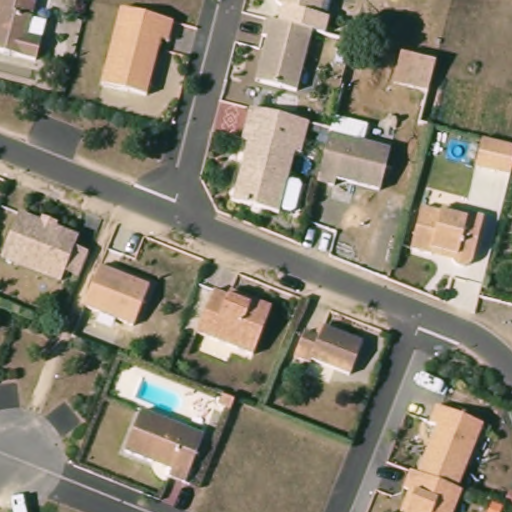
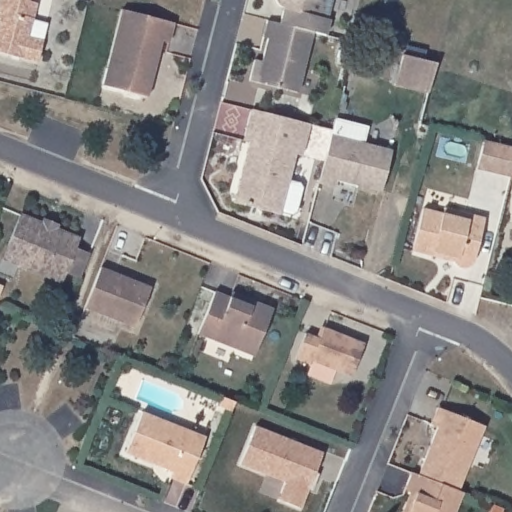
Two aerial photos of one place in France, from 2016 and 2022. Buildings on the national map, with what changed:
unchanged [(46,36),(41,57),(0,47),(0,24),(4,8),(0,7),(2,0),(40,0),(36,14),(31,33),(46,36)]
unchanged [(309,11),(295,7),(271,1),(269,0),(312,0),(309,11)]
unchanged [(99,69),(115,10),(166,23),(161,42),(154,41),(140,97),(115,91),(95,86),(99,69)]
unchanged [(295,92),(255,82),(265,38),(260,36),(265,20),(311,32),(295,92)]
unchanged [(425,93),(393,84),(400,55),(435,64),(425,93)]
unchanged [(293,211),(282,208),(281,211),(235,199),(251,139),(246,137),(255,106),(312,122),(304,153),(297,151),(290,177),(302,180),(305,184),(297,209),(293,211)]
unchanged [(383,189),(339,178),(337,185),(320,181),(333,133),(393,148),(383,189)]
unchanged [(512,173),(511,175),(478,165),(486,138),(512,144),(512,173)]
unchanged [(412,247),(423,205),(443,210),(445,204),(465,210),(485,215),(472,263),(470,263),(468,264),(466,264),(464,264),(463,264),(462,264),(460,263),(458,263),(457,262),(456,261),(455,260),(455,259),(454,258),(433,252),(412,247)]
unchanged [(0,261),(0,248),(1,245),(14,216),(35,225),(37,221),(50,226),(49,230),(71,240),(67,250),(82,256),(75,274),(72,279),(58,273),(56,276),(54,283),(0,261)]
unchanged [(142,284),(126,324),(76,304),(92,264),(142,284)]
unchanged [(223,292),(244,300),(264,308),(245,355),(190,334),(206,291),(221,297),(223,292)]
unchanged [(355,343),(342,375),(304,360),(302,364),(287,358),(297,332),(311,338),(315,327),(355,343)]
unchanged [(236,399),(232,408),(220,404),(225,394),(236,399)]
unchanged [(478,422),(451,487),(412,471),(432,423),(425,420),(432,404),(478,422)]
unchanged [(118,455),(134,414),(196,439),(178,486),(162,480),(165,473),(145,466),(118,455)]
new [(256,425),(322,452),(300,508),(278,499),(285,481),(240,463),(256,425)]
unchanged [(412,471),(451,487),(456,489),(447,512),(400,512),(400,510),(395,508),(404,488),(398,485),(405,468),(412,471)]
unchanged [(487,512),(490,507),(501,511),(501,512),(487,512)]

